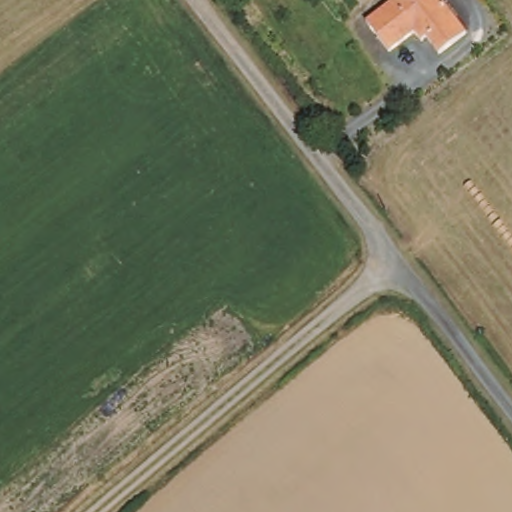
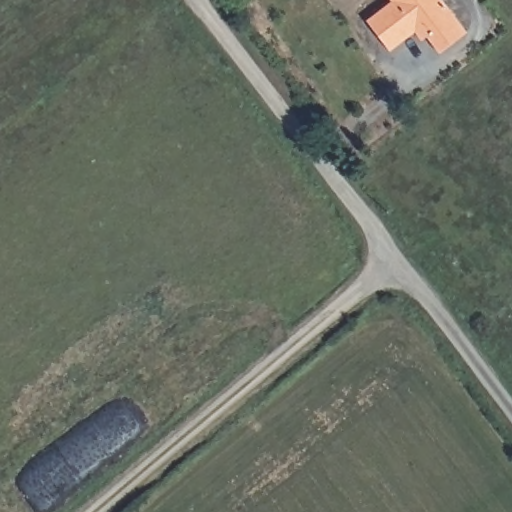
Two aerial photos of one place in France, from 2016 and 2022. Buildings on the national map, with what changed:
unchanged [(391,2),(390,0),(436,0),(440,7),(445,5),(466,35),(438,55),(426,39),(420,42),(412,33),(387,51),(365,21),(391,2)]

